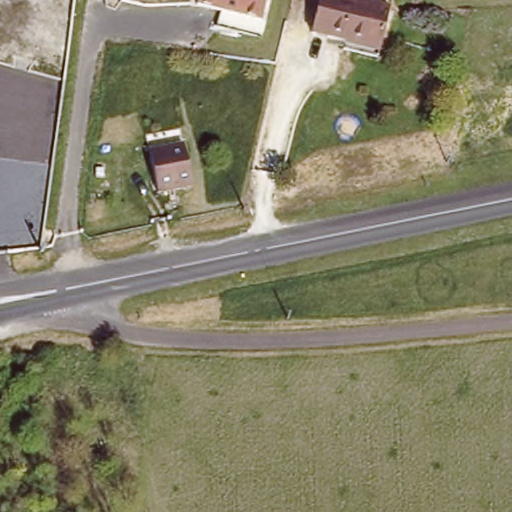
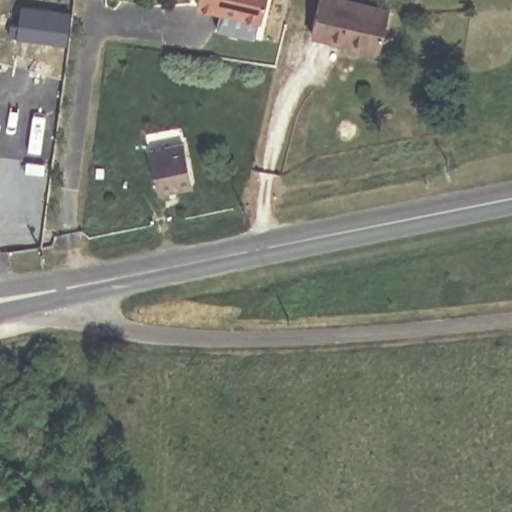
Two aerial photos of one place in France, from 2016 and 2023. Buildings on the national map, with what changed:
unchanged [(197,6),(198,0),(262,0),(258,19),(197,6)]
unchanged [(334,0),(354,0),(390,7),(381,52),(355,46),(325,40),(334,0)]
new [(19,7),(68,15),(63,45),(14,36),(19,7)]
unchanged [(185,140),(192,183),(158,189),(152,146),(185,140)]

